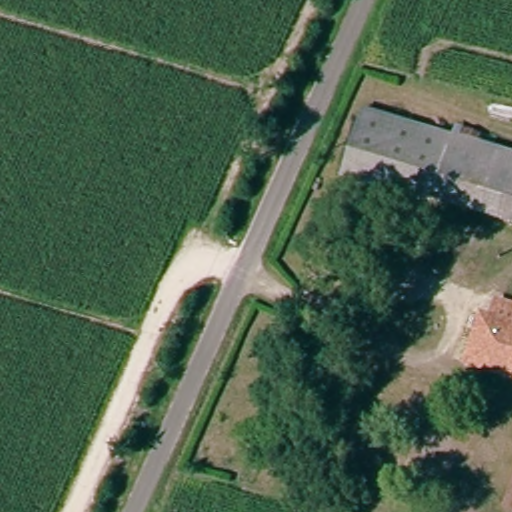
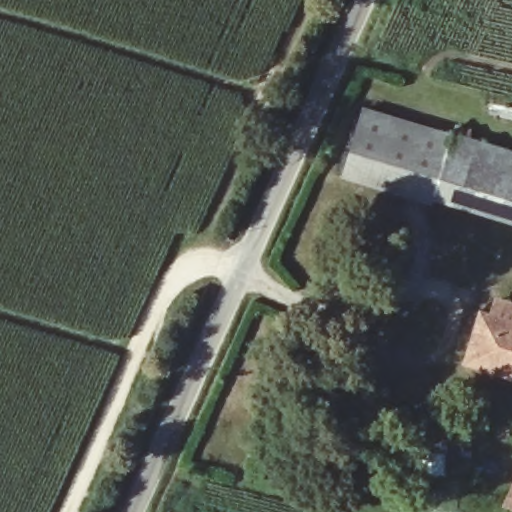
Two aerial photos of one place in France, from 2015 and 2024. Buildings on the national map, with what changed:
unchanged [(348,176),(366,113),(456,140),(438,203),(348,176)]
unchanged [(512,183),(512,225),(438,203),(456,140),(510,157),(502,181),(512,183)]
unchanged [(512,183),(502,181),(510,157),(512,157),(512,183)]
unchanged [(375,238),(366,276),(332,268),(338,246),(350,249),(354,233),(375,238)]
unchanged [(484,312),(512,320),(512,375),(468,362),(484,312)]
unchanged [(512,492),(512,493),(511,493),(512,492)]

